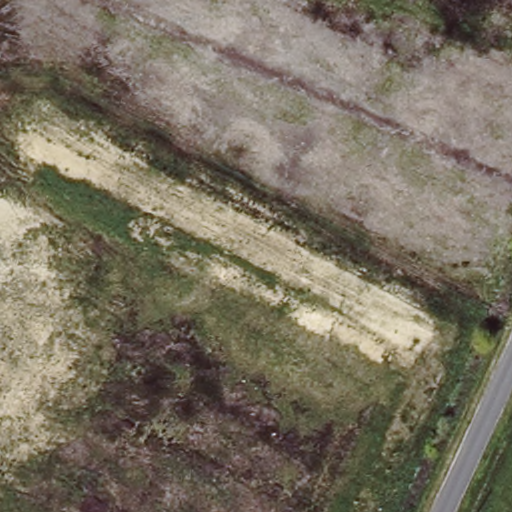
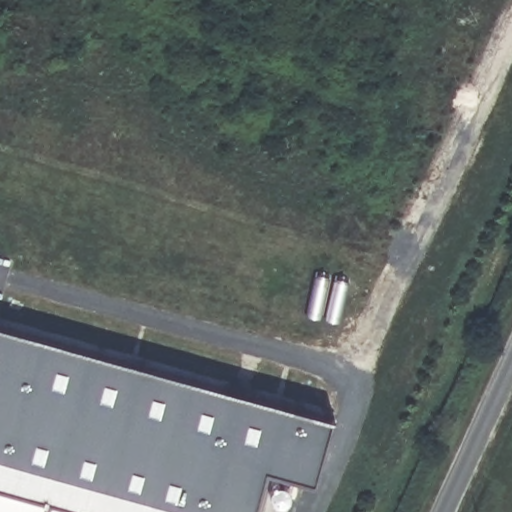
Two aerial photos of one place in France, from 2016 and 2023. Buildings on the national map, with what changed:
new [(266,471),(255,512),(0,512),(0,328),(334,420),(315,484),(266,471)]

